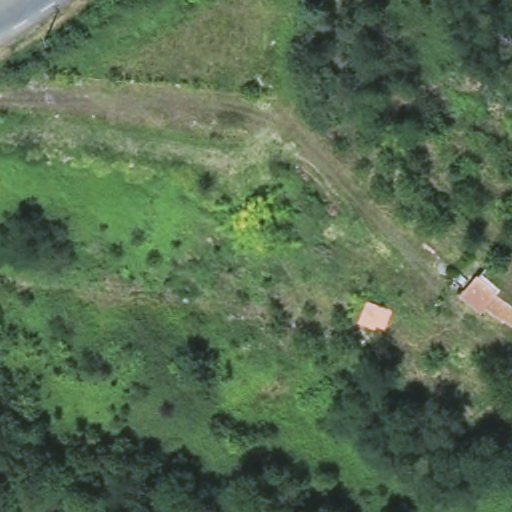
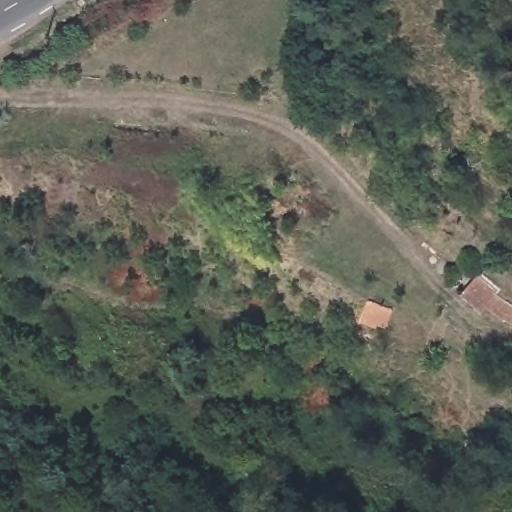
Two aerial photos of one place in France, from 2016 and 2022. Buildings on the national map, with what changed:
unchanged [(512,298),(512,322),(489,302),(483,309),(467,294),(484,273),(512,298)]

